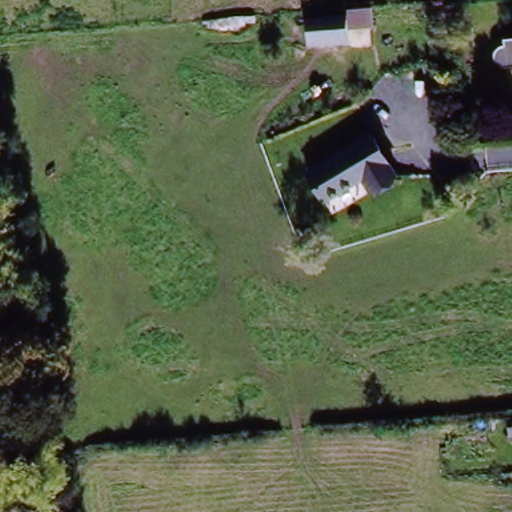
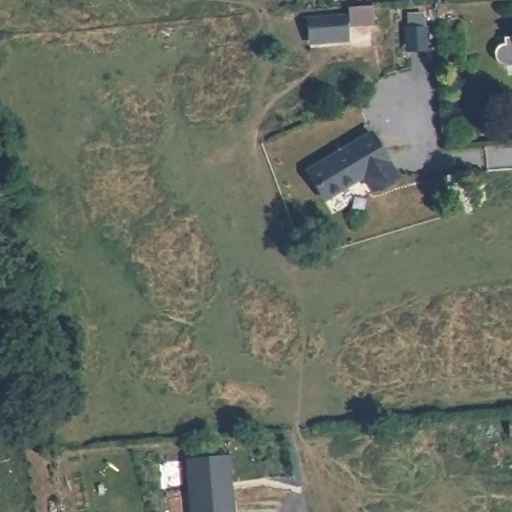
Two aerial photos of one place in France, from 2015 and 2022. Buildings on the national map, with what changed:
unchanged [(306,8),(374,4),(375,25),(347,27),(348,42),(308,45),(306,8)]
unchanged [(390,176),(366,191),(359,180),(325,202),(305,172),(367,137),(390,176)]
unchanged [(511,415),(512,414),(512,439),(512,440),(511,415)]
new [(235,512),(192,512),(188,461),(231,457),(235,512)]

